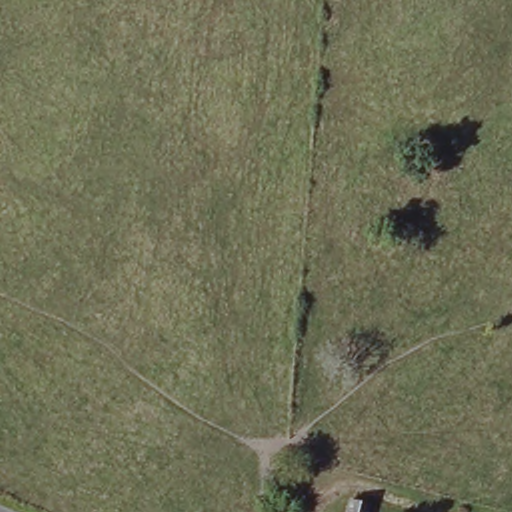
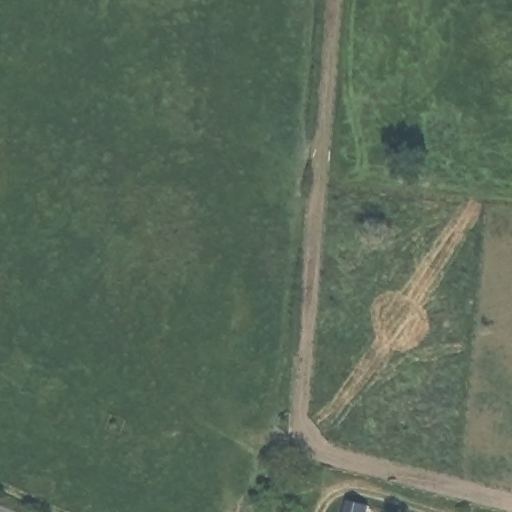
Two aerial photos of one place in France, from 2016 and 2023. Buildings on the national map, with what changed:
unchanged [(349,504),(368,510),(368,512),(347,512),(349,504)]

